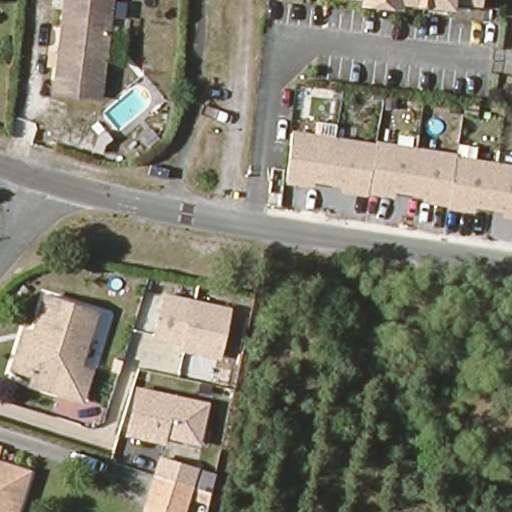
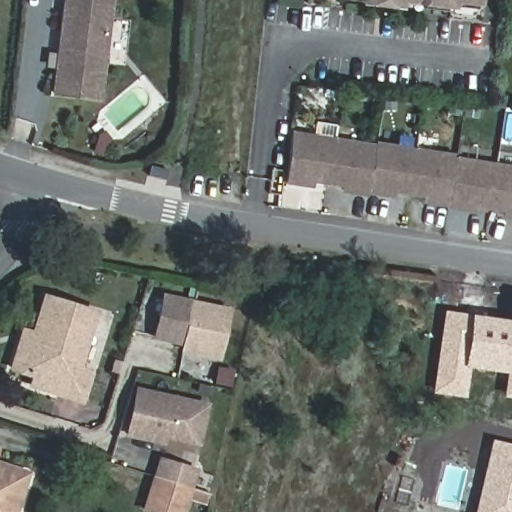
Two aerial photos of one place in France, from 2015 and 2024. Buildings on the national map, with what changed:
unchanged [(104,98),(60,93),(71,0),(116,0),(104,98)]
unchanged [(478,7),(451,4),(450,11),(422,8),(389,4),(374,2),(356,0),(479,0),(478,7)]
unchanged [(506,213),(478,208),(476,213),(424,206),(424,197),(397,194),(396,200),(343,193),(343,187),(316,183),(315,190),(285,186),(293,132),(377,145),(378,142),(458,155),(458,158),(512,166),(512,219),(506,219),(506,213)]
unchanged [(220,361),(181,354),(183,346),(155,340),(165,295),(231,308),(220,361)]
unchanged [(34,375),(21,371),(11,368),(23,331),(33,334),(45,296),(96,312),(78,367),(91,371),(81,401),(49,390),(31,384),(34,375)]
new [(506,374),(469,368),(465,398),(432,394),(443,311),(470,314),(512,319),(512,398),(502,397),(506,374)]
unchanged [(202,447),(167,439),(166,447),(126,437),(138,386),(212,403),(202,447)]
new [(512,444),(512,512),(474,512),(491,440),(512,444)]
unchanged [(195,487),(162,476),(161,476),(171,442),(206,453),(195,487)]
unchanged [(28,470),(13,512),(0,512),(0,460),(28,470)]
unchanged [(160,512),(150,509),(161,476),(162,476),(195,487),(188,512),(160,512)]

